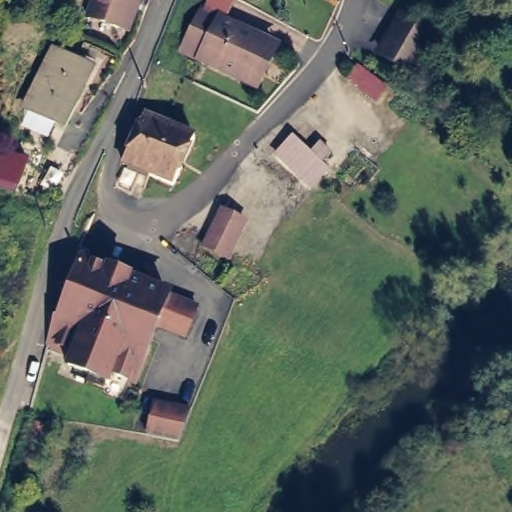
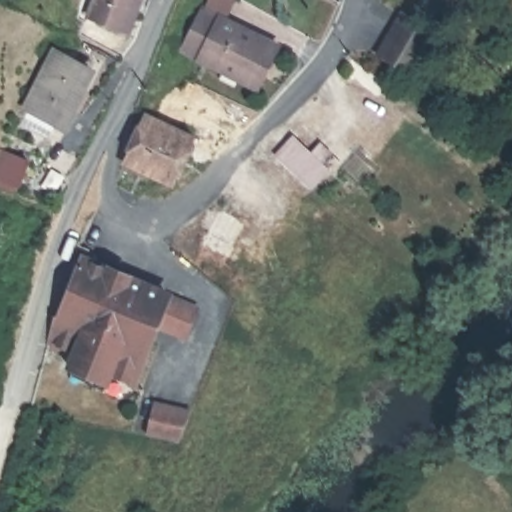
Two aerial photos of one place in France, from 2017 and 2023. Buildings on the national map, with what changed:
unchanged [(136,0),(125,29),(90,16),(97,0),(136,0)]
unchanged [(440,30),(420,75),(379,60),(400,13),(440,30)]
unchanged [(270,52),(250,94),(180,61),(198,20),(270,52)]
unchanged [(28,105),(55,51),(90,69),(63,125),(55,121),(48,135),(27,125),(28,105)]
unchanged [(143,117),(193,140),(173,186),(141,172),(122,164),(143,117)]
unchanged [(313,195),(272,157),(295,134),(333,171),(313,195)]
unchanged [(9,151),(28,159),(19,180),(1,172),(9,151)]
unchanged [(58,199),(40,191),(47,174),(66,181),(58,199)]
unchanged [(253,217),(236,254),(214,242),(231,207),(253,217)]
unchanged [(91,263),(112,272),(113,269),(136,278),(135,281),(173,297),(183,301),(200,307),(189,338),(178,335),(162,327),(139,385),(117,376),(114,385),(74,369),(78,360),(51,349),(60,318),(66,321),(91,263)]
unchanged [(194,406),(183,436),(159,433),(154,432),(160,400),(168,402),(194,406)]

